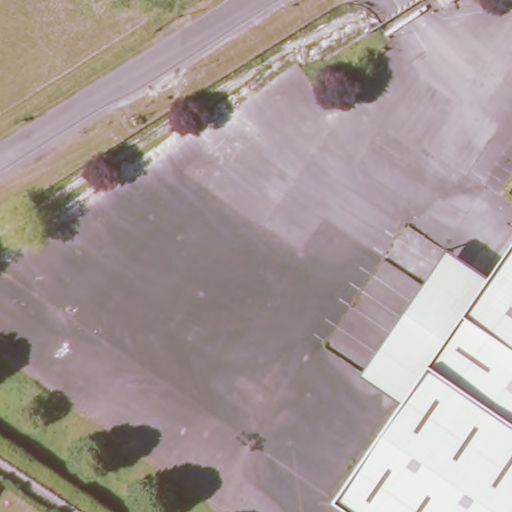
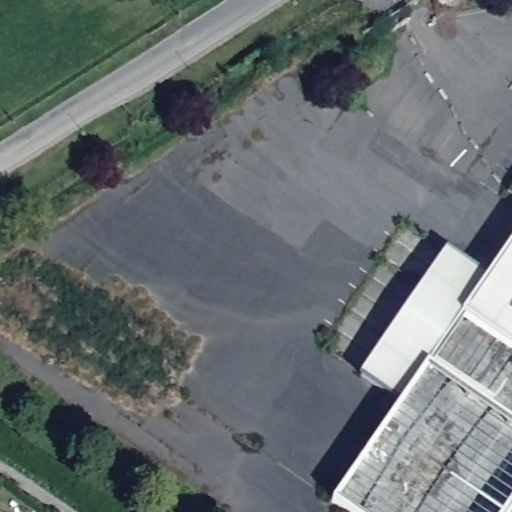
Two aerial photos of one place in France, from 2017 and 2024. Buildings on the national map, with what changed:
unchanged [(512,175),(512,198),(501,192),(512,175)]
unchanged [(326,500),(397,394),(354,369),(442,245),(479,272),(512,225),(512,499),(503,512),(345,512),(326,500)]

